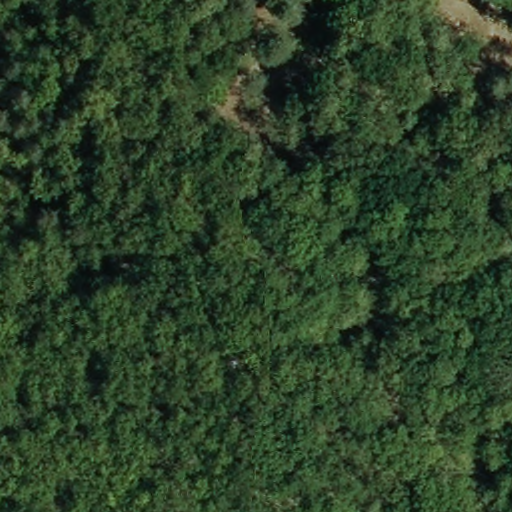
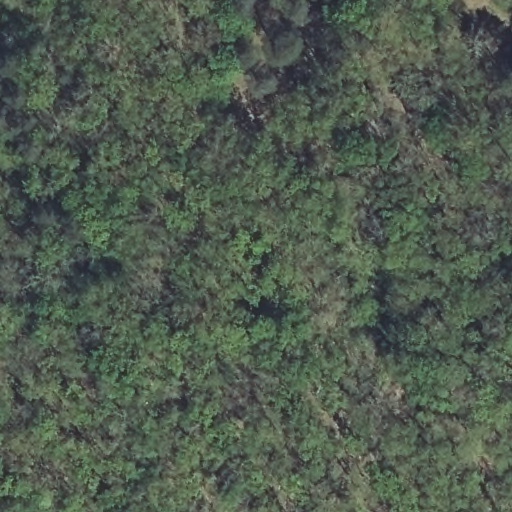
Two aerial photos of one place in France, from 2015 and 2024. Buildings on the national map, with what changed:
[]

